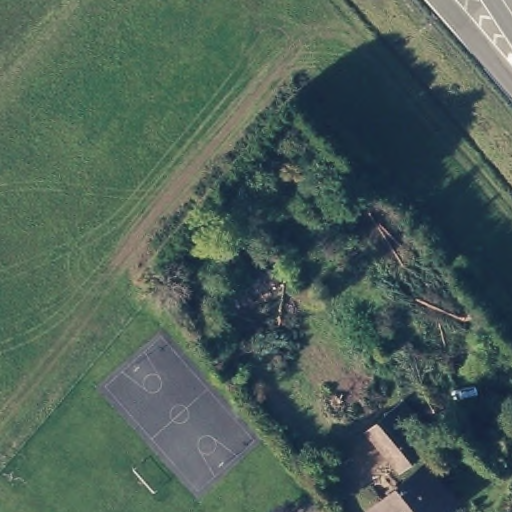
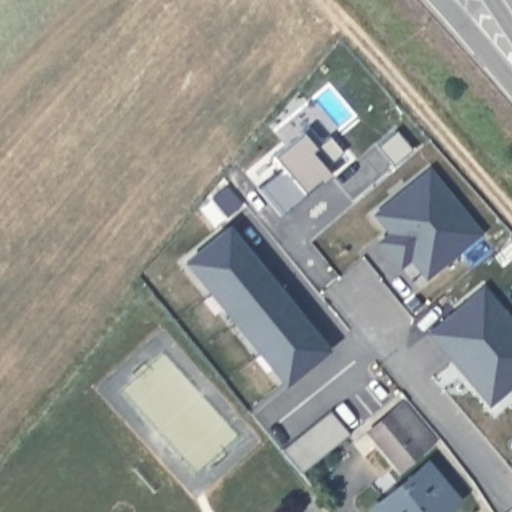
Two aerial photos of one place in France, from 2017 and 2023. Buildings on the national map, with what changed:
new [(278,212),(257,187),(280,166),(270,155),(307,124),(320,140),(327,134),(342,152),(324,167),(330,173),(319,182),(280,215),(278,212)]
new [(410,256),(399,263),(393,257),(380,241),(390,232),(375,214),(384,207),(429,171),(478,232),(433,268),(425,275),(410,256)]
new [(226,227),(324,349),(282,382),(185,261),(226,227)]
demolished [(270,292),(257,304),(246,292),(259,280),(270,292)]
new [(429,332),(482,288),(512,324),(512,383),(492,400),(487,403),(454,362),(429,332)]
unchanged [(392,472),(355,430),(376,412),(389,401),(428,446),(415,457),(395,475),(392,472)]
new [(328,410),(348,433),(298,473),(279,450),(328,410)]
unchanged [(382,512),(379,508),(390,498),(377,486),(392,472),(395,475),(404,485),(428,462),(460,496),(443,512),(382,512)]

